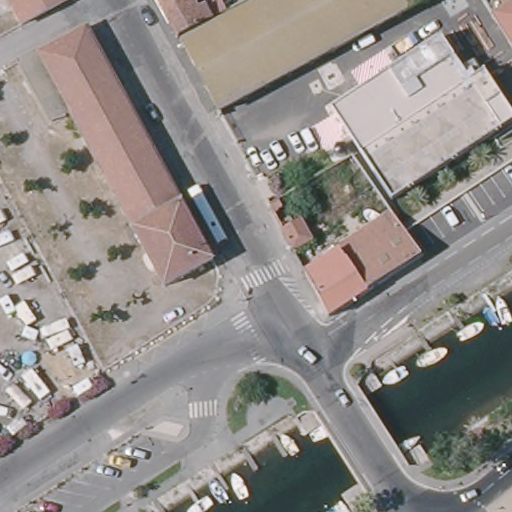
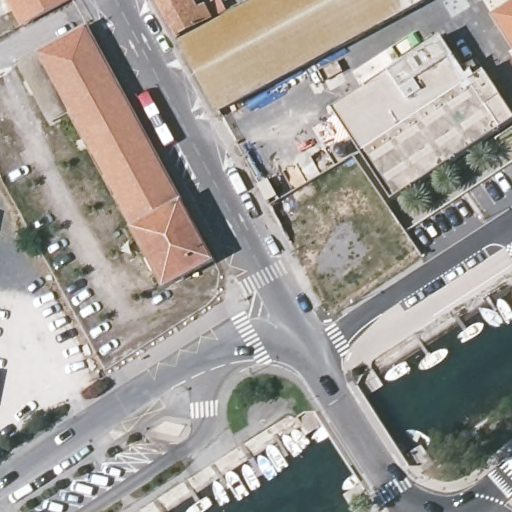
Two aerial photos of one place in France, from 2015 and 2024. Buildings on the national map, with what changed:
unchanged [(72,3),(20,30),(4,0),(70,0),(72,3)]
unchanged [(153,0),(177,0),(185,14),(210,0),(217,13),(173,37),(153,0)]
unchanged [(214,110),(181,49),(271,0),(415,0),(214,110)]
unchanged [(492,11),(510,0),(512,0),(512,41),(492,11)]
unchanged [(87,26),(215,260),(165,287),(72,112),(39,52),(87,26)]
unchanged [(440,39),(463,78),(477,70),(512,121),(512,122),(395,200),(334,107),(440,39)]
unchanged [(51,124),(18,64),(39,52),(72,112),(51,124)]
demolished [(330,322),(307,278),(342,256),(339,250),(390,217),(400,232),(422,262),(330,322)]
demolished [(284,237),(303,227),(315,246),(295,257),(284,237)]

